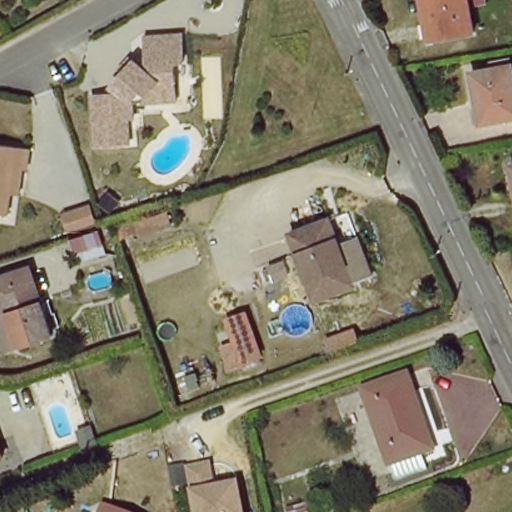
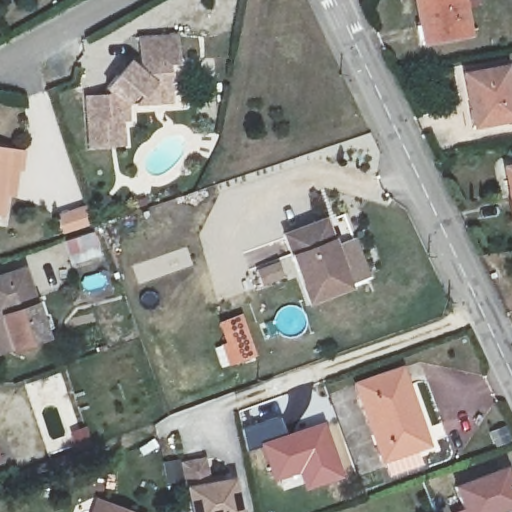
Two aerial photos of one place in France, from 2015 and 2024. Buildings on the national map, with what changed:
unchanged [(474,35),(431,43),(423,0),(467,0),(474,35)]
unchanged [(136,102),(127,103),(127,118),(122,118),(123,143),(89,145),(87,94),(107,93),(111,90),(107,86),(130,60),(138,67),(142,63),(141,37),(178,36),(179,63),(169,64),(170,82),(171,102),(136,102)]
unchanged [(512,93),(512,120),(476,126),(465,76),(508,70),(512,93)]
unchanged [(23,151),(19,172),(16,171),(11,197),(2,195),(0,210),(0,147),(23,151)]
unchanged [(509,169),(512,168),(512,186),(509,169)]
unchanged [(324,217),(348,288),(308,299),(287,228),(324,217)]
unchanged [(87,231),(92,247),(74,253),(63,256),(58,240),(87,231)]
unchanged [(0,327),(0,272),(28,264),(49,333),(16,343),(6,346),(0,327)]
new [(245,338),(259,376),(240,383),(227,344),(245,338)]
unchanged [(403,366),(429,442),(384,458),(361,378),(403,366)]
new [(343,477),(304,491),(297,475),(272,483),(260,447),(247,451),(241,426),(281,415),(286,432),(325,421),(343,477)]
unchanged [(206,483),(230,479),(236,512),(190,512),(181,462),(202,459),(206,483)]
new [(455,485),(506,468),(512,483),(512,511),(509,512),(454,512),(463,508),(455,485)]

